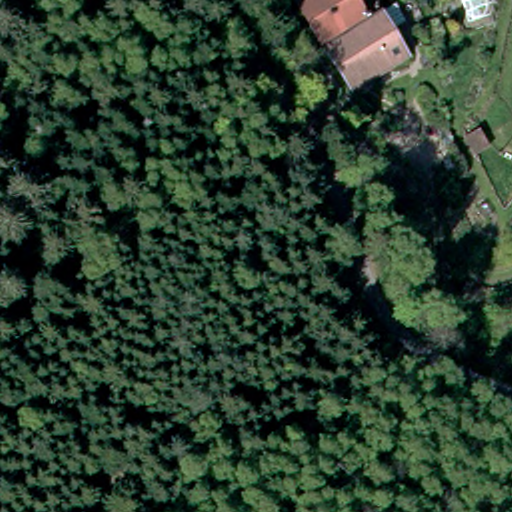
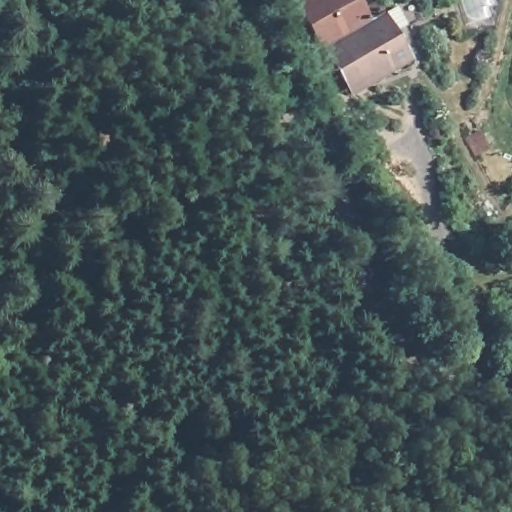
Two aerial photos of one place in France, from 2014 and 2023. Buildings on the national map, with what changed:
unchanged [(375,19),(407,65),(351,105),(293,19),(323,0),(345,0),(363,26),(375,19)]

